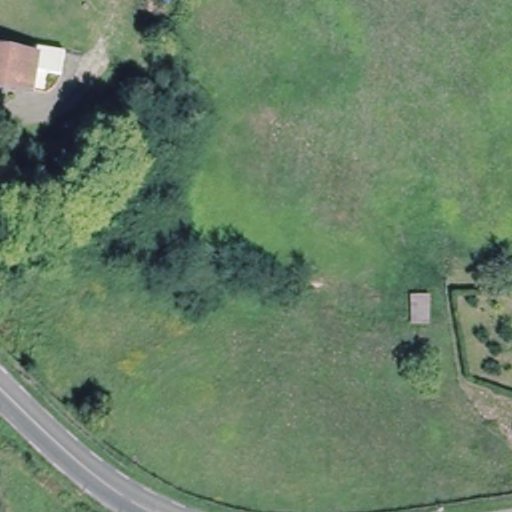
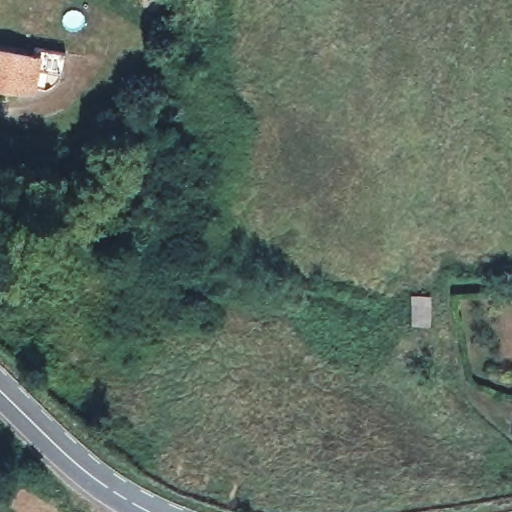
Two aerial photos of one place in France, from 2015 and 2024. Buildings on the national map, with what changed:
unchanged [(24,73),(20,93),(0,88),(0,58),(25,63),(30,48),(57,54),(51,79),(24,73)]

